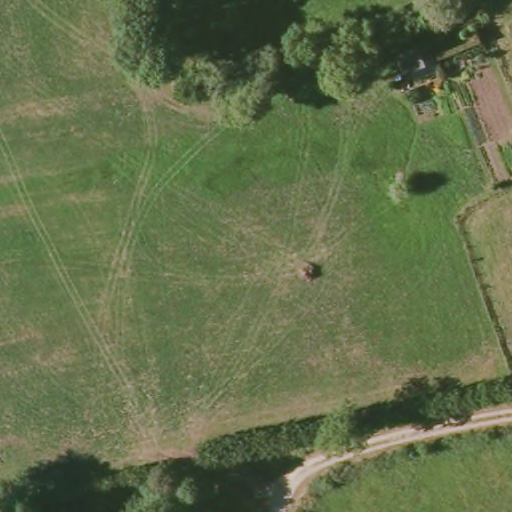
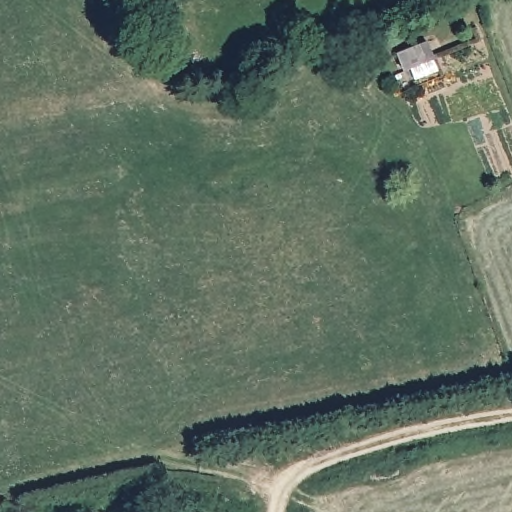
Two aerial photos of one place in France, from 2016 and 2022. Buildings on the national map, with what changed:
unchanged [(434,60),(405,71),(398,54),(427,43),(434,60)]

